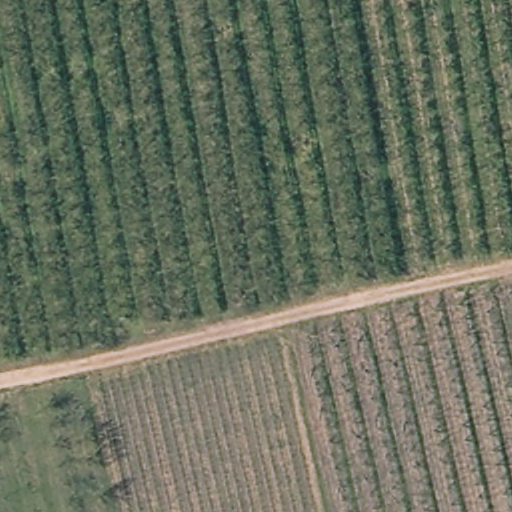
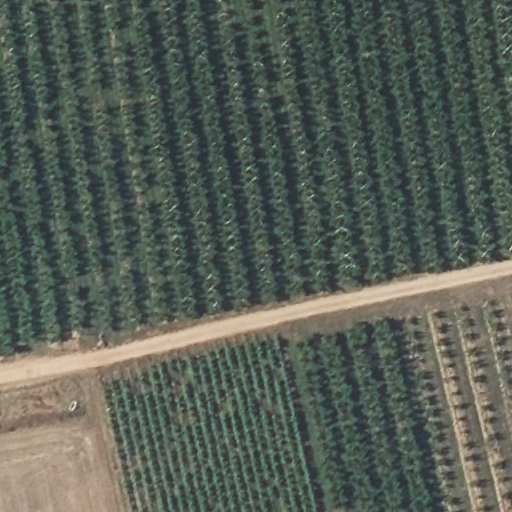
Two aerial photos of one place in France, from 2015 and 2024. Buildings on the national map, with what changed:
[]

